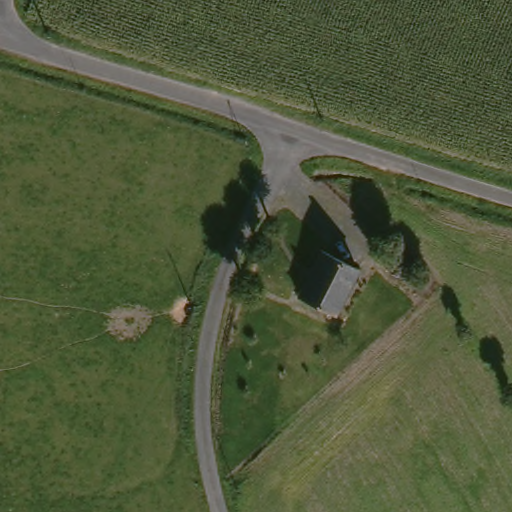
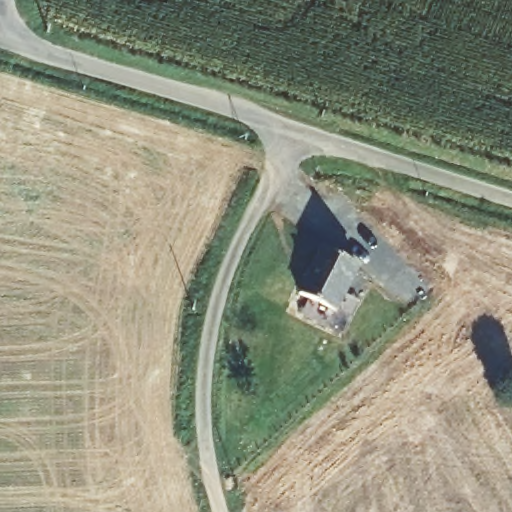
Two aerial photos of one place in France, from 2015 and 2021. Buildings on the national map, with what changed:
unchanged [(335,315),(300,296),(323,252),(358,271),(335,315)]

